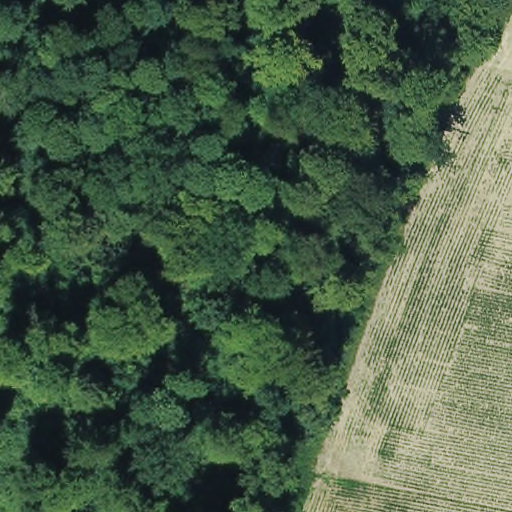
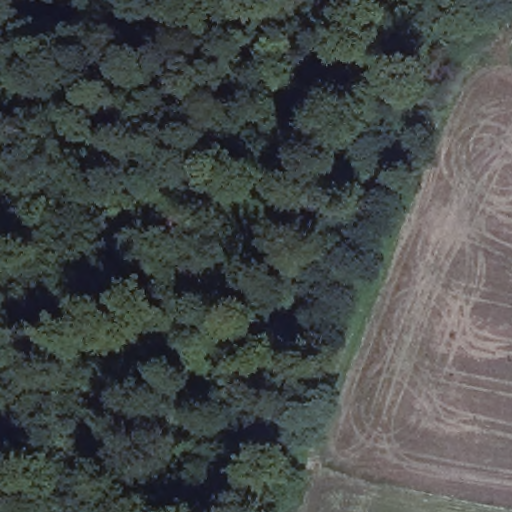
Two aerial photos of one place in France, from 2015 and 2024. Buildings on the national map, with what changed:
unchanged [(414,22),(399,112),(354,107),(384,17),(414,22)]
unchanged [(289,372),(288,417),(279,447),(259,462),(238,461),(228,452),(264,367),(289,372)]

